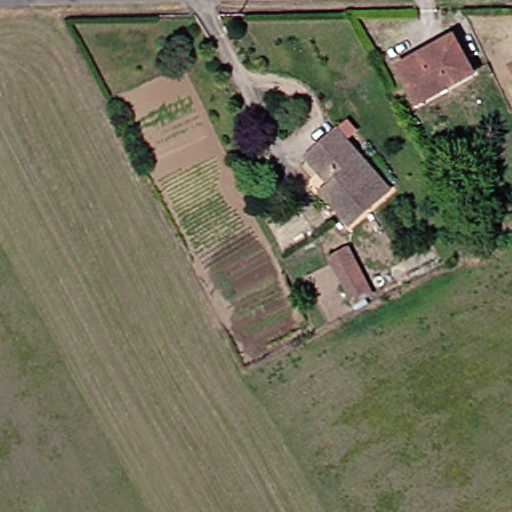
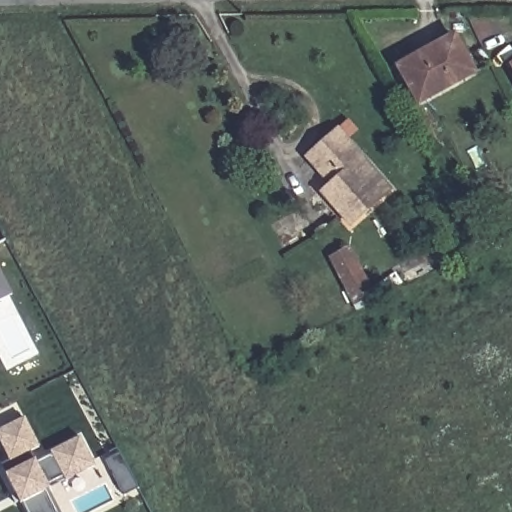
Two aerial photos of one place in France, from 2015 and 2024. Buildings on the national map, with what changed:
unchanged [(465,72),(411,101),(391,67),(446,38),(465,72)]
unchanged [(502,65),(512,61),(512,83),(502,65)]
unchanged [(379,191),(340,226),(314,198),(323,189),(298,162),(329,134),(379,191)]
unchanged [(338,252),(362,298),(342,308),(319,263),(338,252)]
new [(0,298),(0,268),(12,291),(0,298)]
new [(95,465),(52,487),(58,504),(62,512),(26,512),(3,465),(9,461),(0,443),(0,428),(24,417),(39,446),(30,451),(35,460),(80,436),(95,465)]

